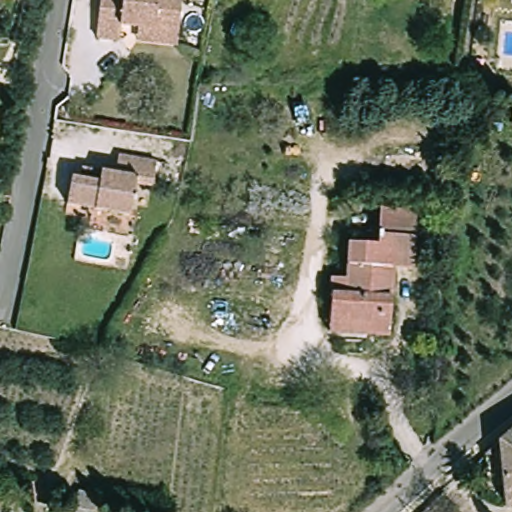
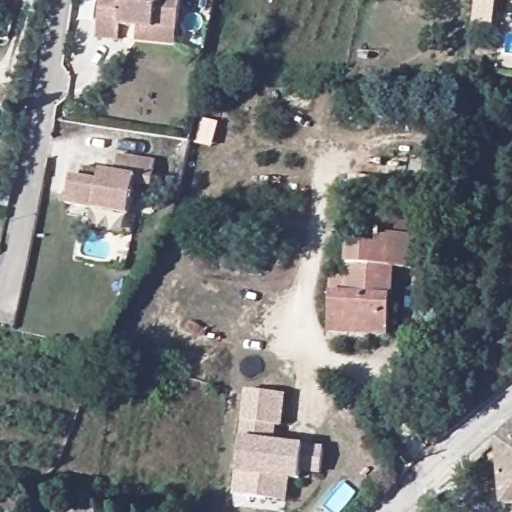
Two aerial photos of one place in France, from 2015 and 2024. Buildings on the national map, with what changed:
unchanged [(187,32),(131,26),(129,36),(129,41),(106,39),(111,0),(191,0),(187,32)]
unchanged [(135,179),(129,211),(67,200),(71,172),(81,175),(83,163),(115,169),(119,151),(156,157),(152,182),(135,179)]
unchanged [(0,205),(0,198),(10,197),(9,206),(0,205)]
unchanged [(336,324),(339,280),(354,280),(355,245),(364,245),(365,234),(384,235),(385,210),(421,211),(418,270),(399,270),(396,337),(375,336),(336,334),(336,324)]
new [(269,501),(238,497),(251,392),(288,397),(284,428),(263,426),(261,443),(328,451),(324,475),(304,473),(304,482),(292,480),(289,503),(269,501)]
unchanged [(504,440),(512,434),(512,504),(510,505),(508,481),(491,482),(489,456),(504,440)]
unchanged [(85,508),(95,510),(95,512),(44,512),(44,505),(64,507),(68,490),(88,495),(85,508)]
unchanged [(431,512),(420,512),(426,506),(431,512)]

